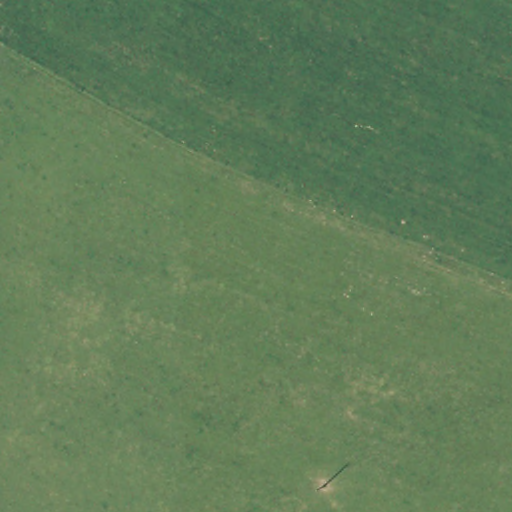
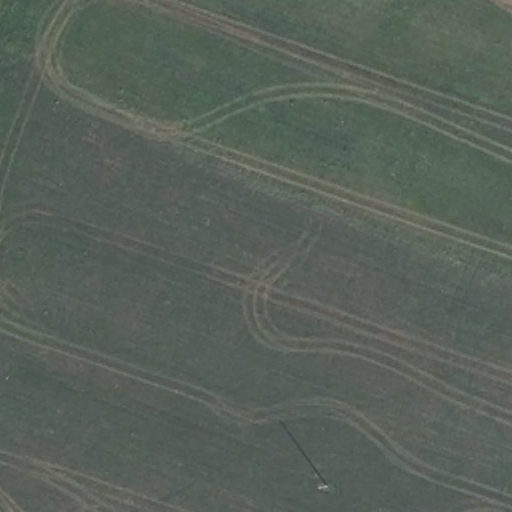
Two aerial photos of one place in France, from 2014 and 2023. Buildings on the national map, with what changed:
[]

